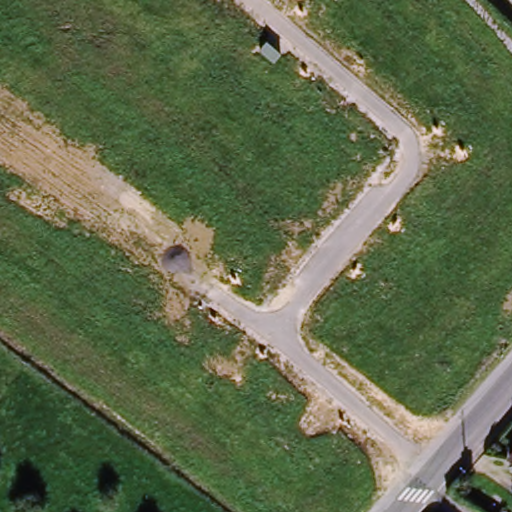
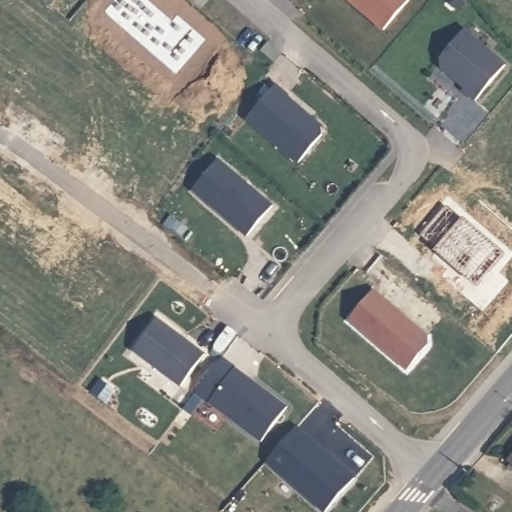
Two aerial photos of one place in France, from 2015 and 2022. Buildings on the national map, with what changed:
new [(348,0),(407,0),(381,29),(348,0)]
new [(462,31),(503,67),(473,101),(460,90),(462,87),(434,62),(462,31)]
new [(273,83),(286,94),(285,95),(319,126),(320,134),(295,162),(243,116),(273,83)]
new [(189,188),(215,158),(269,205),(243,235),(189,188)]
new [(370,291),(423,337),(423,345),(402,369),(345,319),(370,291)]
new [(128,348),(152,316),(200,353),(176,385),(128,348)]
new [(217,356),(283,407),(257,441),(190,390),(217,356)]
new [(291,426),(349,478),(319,512),(261,460),(291,426)]
unchanged [(512,463),(512,465),(511,464),(512,463)]

